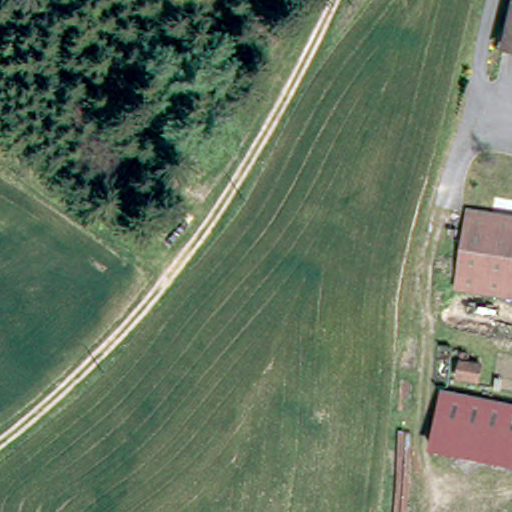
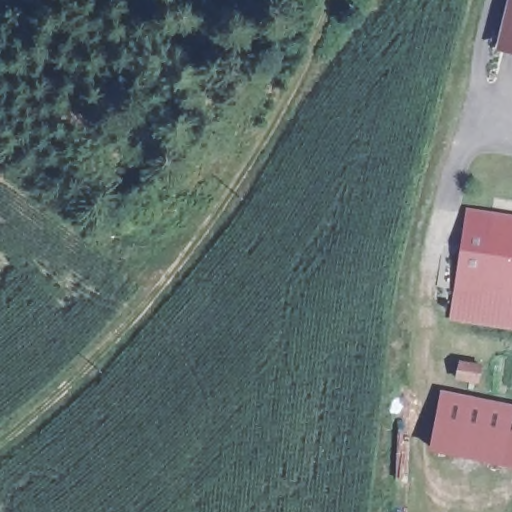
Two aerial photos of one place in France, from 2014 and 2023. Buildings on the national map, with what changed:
unchanged [(512,10),(512,49),(505,47),(512,10)]
unchanged [(512,219),(512,263),(464,255),(472,211),(512,219)]
unchanged [(464,255),(512,263),(512,295),(459,287),(464,255)]
new [(453,318),(459,287),(512,295),(512,328),(453,318)]
unchanged [(443,410),(445,401),(512,416),(512,462),(437,448),(443,410)]

